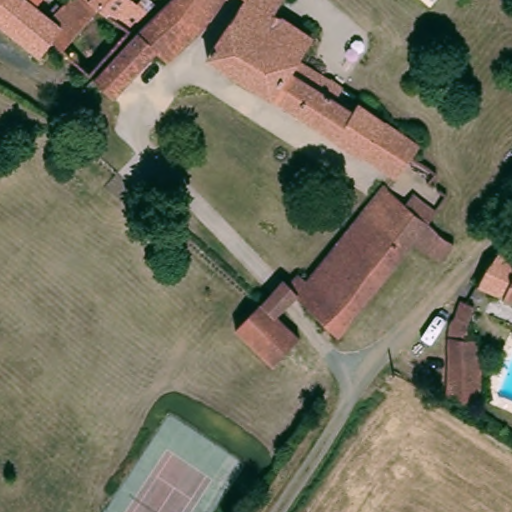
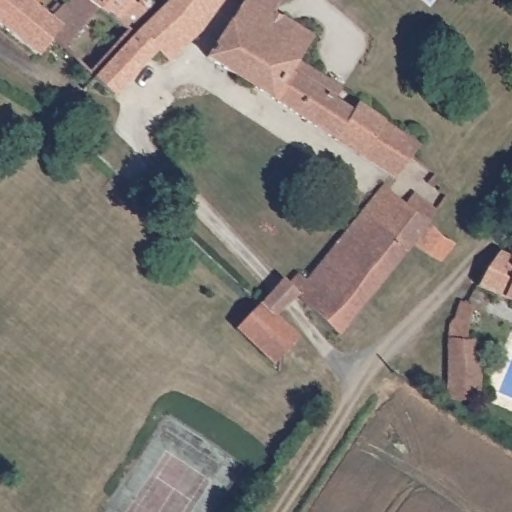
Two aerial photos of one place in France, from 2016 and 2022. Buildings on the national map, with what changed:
unchanged [(35,2),(50,16),(63,28),(52,40),(39,55),(0,22),(0,0),(36,0),(35,2)]
unchanged [(66,0),(91,0),(100,7),(63,49),(52,40),(63,28),(50,16),(66,0)]
unchanged [(201,30),(166,60),(155,49),(112,96),(99,85),(95,90),(87,84),(98,72),(133,35),(135,34),(139,30),(151,19),(152,17),(165,5),(170,0),(223,0),(201,30)]
unchanged [(155,5),(147,12),(131,29),(130,30),(91,0),(134,0),(138,4),(141,0),(150,0),(155,5)]
unchanged [(261,300),(285,286),(292,277),(297,271),(305,277),(384,184),(405,201),(413,191),(416,194),(421,186),(399,171),(394,177),(326,132),(244,80),(206,55),(243,0),(282,0),(279,5),(275,11),(313,36),(299,58),(331,78),(332,77),(346,86),(338,99),(353,110),(358,101),(386,120),(421,144),(413,155),(437,172),(430,180),(436,185),(449,194),(431,221),(457,242),(443,261),(416,240),(340,332),(299,298),(280,318),(300,336),(276,364),(236,330),(261,300)]
unchanged [(512,240),(512,312),(477,296),(484,271),(511,239),(512,240)]
unchanged [(468,328),(465,345),(483,345),(481,398),(447,397),(454,318),(462,298),(476,305),(468,328)]

